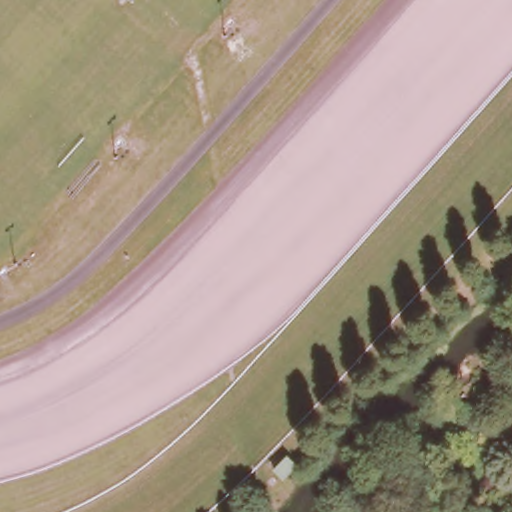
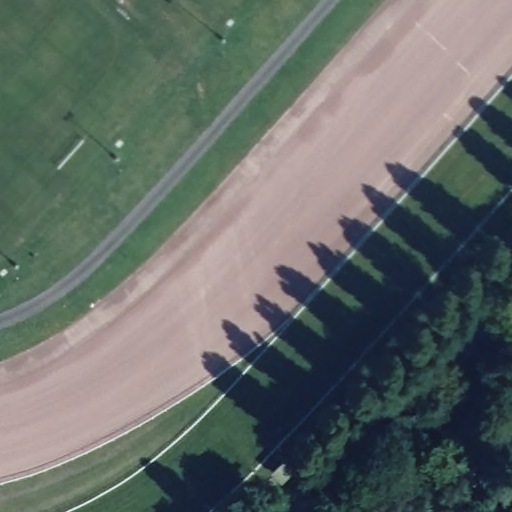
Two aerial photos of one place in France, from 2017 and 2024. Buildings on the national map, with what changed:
unchanged [(280,460),(288,467),(277,479),(270,472),(280,460)]

